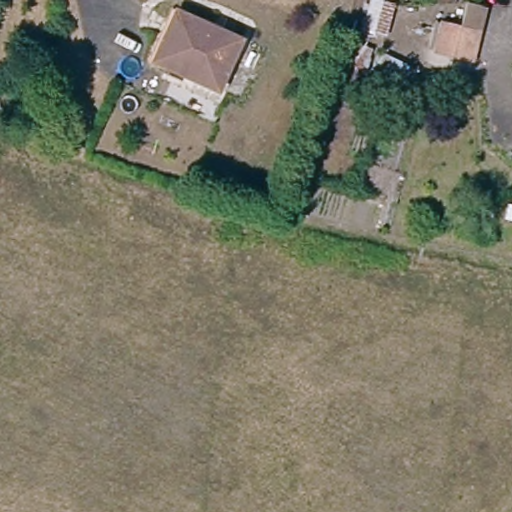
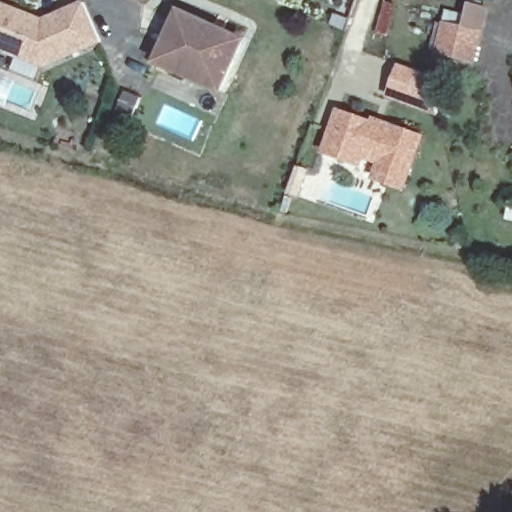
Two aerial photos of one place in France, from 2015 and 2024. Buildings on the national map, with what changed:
new [(81,0),(83,0),(101,45),(42,69),(0,52),(0,1),(42,17),(81,0)]
unchanged [(474,65),(433,55),(441,24),(462,29),(467,6),(487,10),(474,65)]
unchanged [(240,43),(218,92),(156,64),(176,20),(211,35),(213,31),(240,43)]
new [(440,80),(430,109),(437,111),(435,116),(386,99),(398,65),(440,80)]
new [(370,120),(372,116),(425,136),(404,191),(370,181),(376,165),(365,161),(362,169),(320,154),(336,109),(370,120)]

